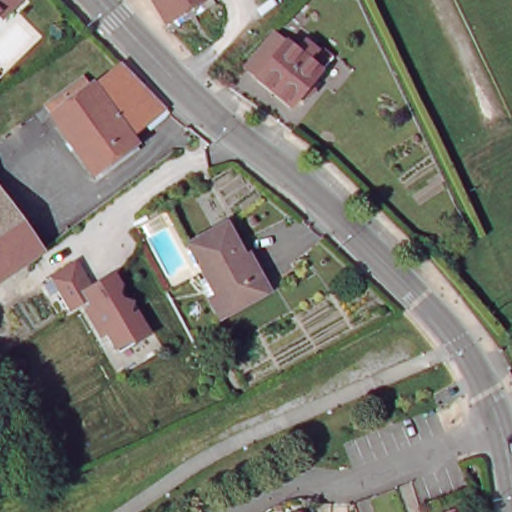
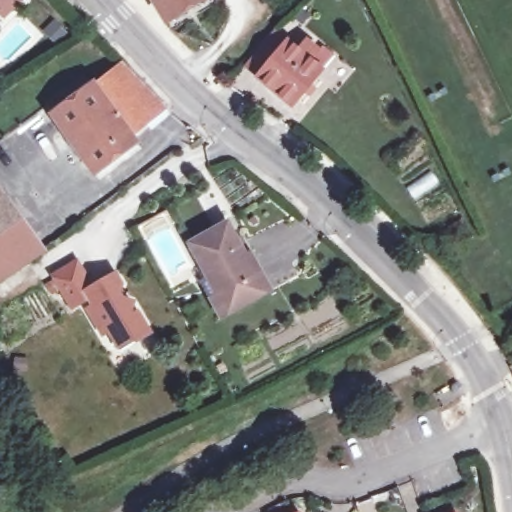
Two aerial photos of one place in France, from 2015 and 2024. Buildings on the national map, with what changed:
unchanged [(0,12),(0,0),(12,0),(0,12)]
unchanged [(172,24),(157,0),(212,0),(172,24)]
unchanged [(299,115),(252,77),(277,47),(285,54),(289,50),(292,52),(293,51),(294,51),(301,43),(325,64),(319,72),(329,80),(299,115)]
unchanged [(100,177),(49,109),(83,87),(89,83),(93,91),(100,90),(129,69),(169,112),(135,136),(142,147),(100,177)]
unchanged [(7,186),(19,203),(18,203),(49,245),(0,279),(0,191),(2,190),(7,186)]
unchanged [(0,191),(0,187),(2,190),(0,191)]
unchanged [(460,217),(470,234),(457,240),(447,224),(460,217)]
unchanged [(275,285),(229,311),(205,271),(211,268),(196,242),(232,222),(249,251),(254,249),(275,285)]
unchanged [(88,286),(111,273),(117,283),(115,292),(118,298),(129,301),(126,311),(128,314),(134,311),(147,331),(132,340),(125,338),(114,345),(105,330),(99,333),(84,309),(90,305),(85,297),(66,309),(65,309),(54,289),(47,276),(72,261),(88,286)]

